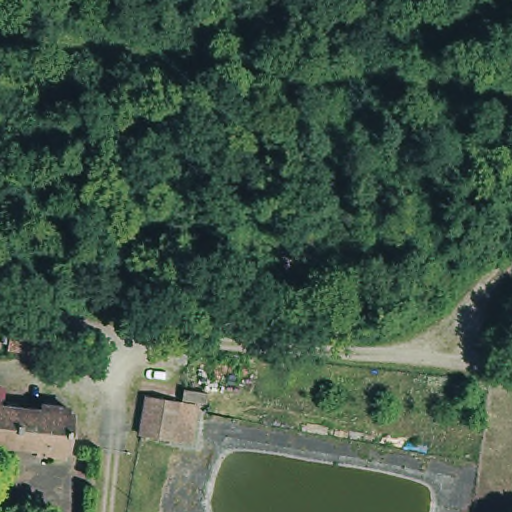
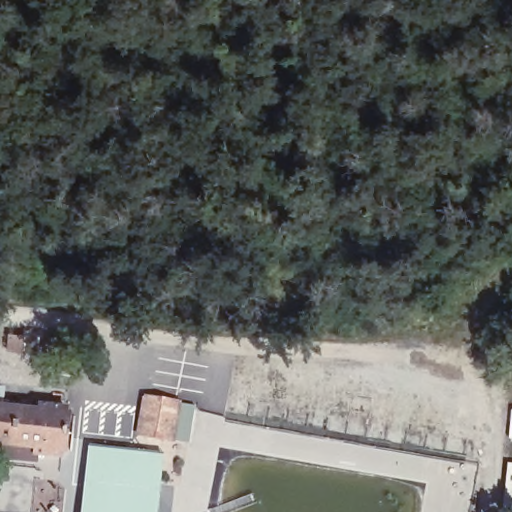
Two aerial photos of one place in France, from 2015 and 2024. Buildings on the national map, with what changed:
unchanged [(4,352),(6,336),(21,338),(20,354),(4,352)]
unchanged [(78,396),(77,403),(80,403),(76,444),(71,443),(71,450),(40,447),(41,440),(3,436),(1,453),(0,453),(0,376),(8,376),(7,394),(46,399),(46,393),(78,396)]
unchanged [(168,446),(140,442),(135,442),(140,400),(145,401),(174,404),(168,446)]
new [(159,512),(80,512),(88,447),(89,447),(166,454),(159,512)]

